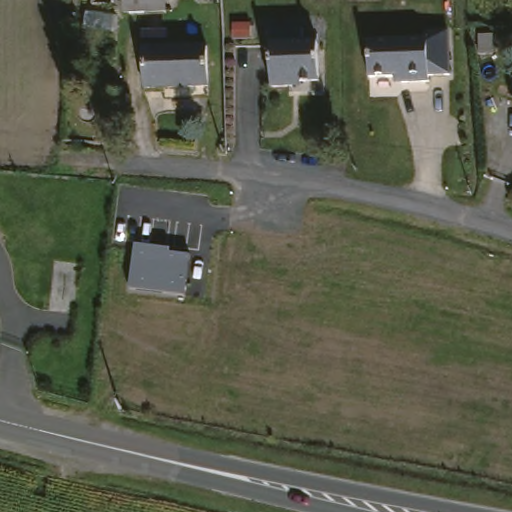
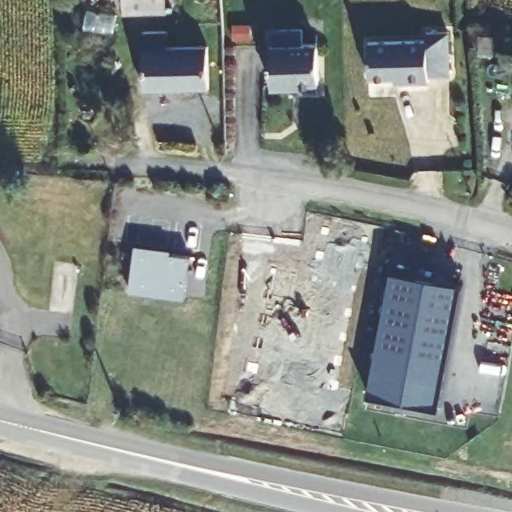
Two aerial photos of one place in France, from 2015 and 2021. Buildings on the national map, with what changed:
unchanged [(142,16),(140,16),(120,16),(120,0),(164,0),(164,16),(142,16)]
unchanged [(162,30),(162,45),(204,44),(205,88),(140,88),(138,30),(162,30)]
unchanged [(317,88),(291,90),(291,95),(271,96),(268,96),(266,50),(272,50),(271,33),(301,31),(302,47),(315,46),(315,48),(317,88)]
unchanged [(427,78),(427,84),(400,85),(400,79),(368,80),(366,44),(425,41),(425,34),(446,33),(448,76),(427,78)]
unchanged [(170,254),(190,256),(185,298),(130,290),(135,245),(170,250),(170,254)]
new [(386,270),(458,283),(435,409),(363,395),(386,270)]

